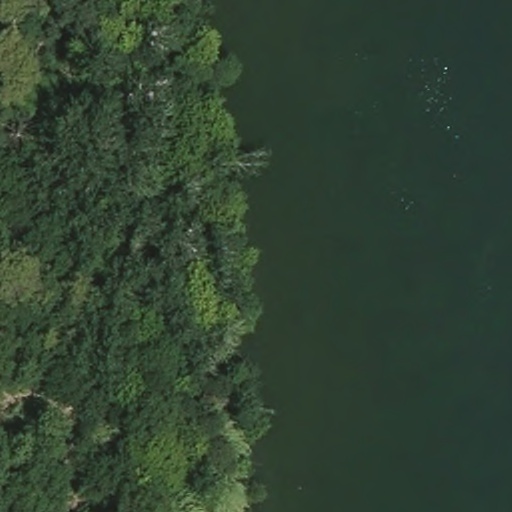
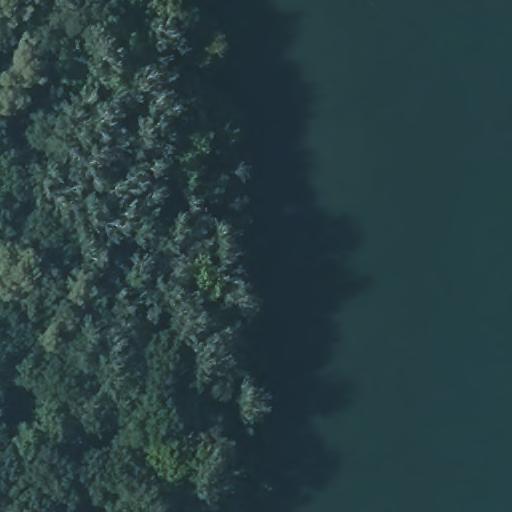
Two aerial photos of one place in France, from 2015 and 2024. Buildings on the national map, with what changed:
[]

